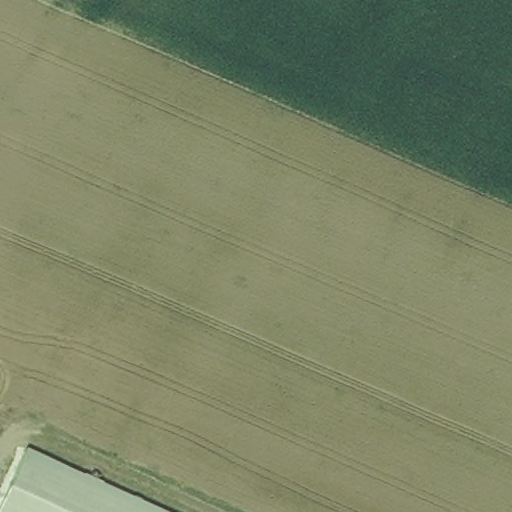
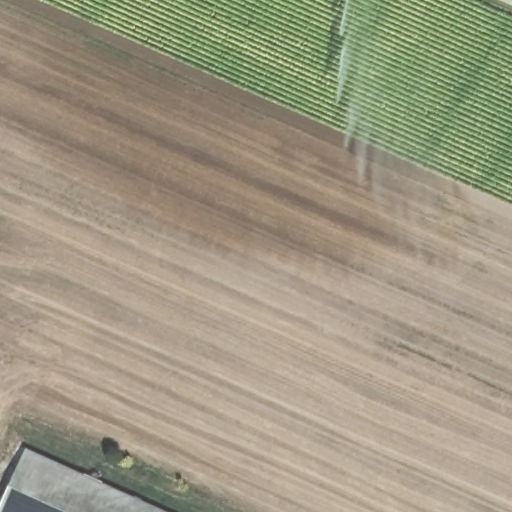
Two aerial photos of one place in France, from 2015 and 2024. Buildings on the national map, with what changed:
unchanged [(165,512),(0,512),(0,509),(27,449),(165,512)]

